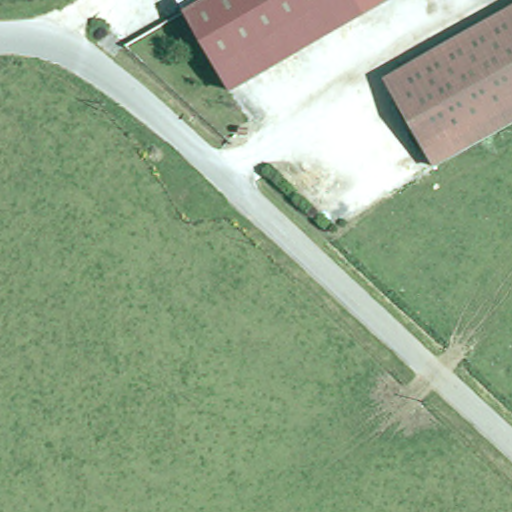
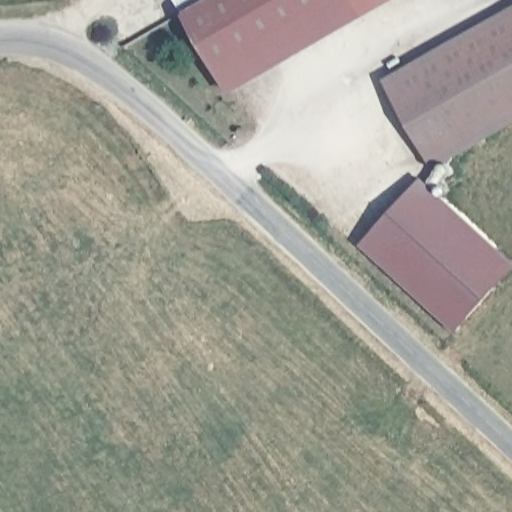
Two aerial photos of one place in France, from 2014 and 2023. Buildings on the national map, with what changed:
unchanged [(177,0),(206,0),(184,13),(177,0)]
unchanged [(213,0),(393,0),(231,95),(186,16),(213,0)]
unchanged [(512,9),(512,122),(440,165),(391,81),(512,9)]
new [(512,258),(512,270),(457,332),(359,244),(421,177),(512,258)]

